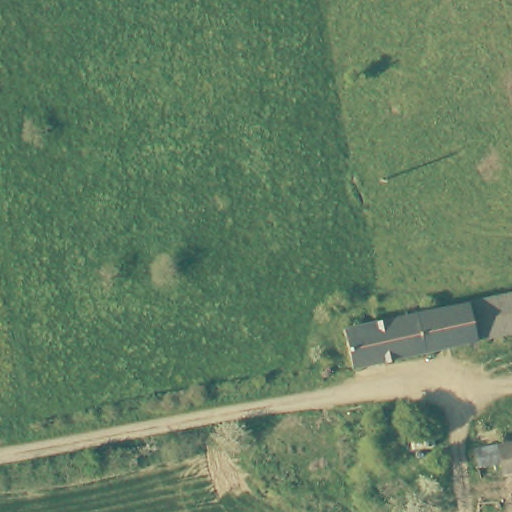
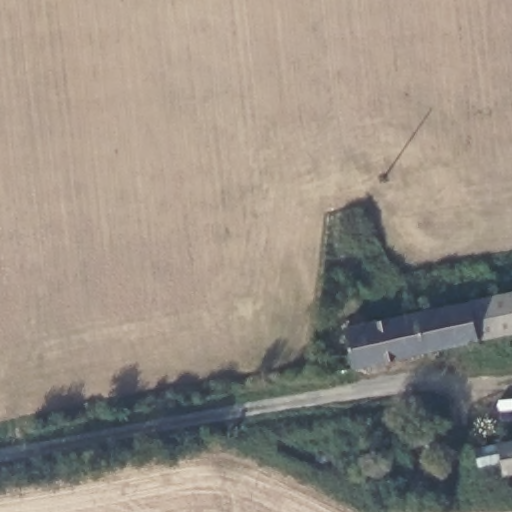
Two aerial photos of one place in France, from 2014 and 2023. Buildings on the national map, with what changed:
unchanged [(424,315),(423,314),(423,312),(423,311),(424,309),(425,308),(426,307),(427,306),(428,305),(430,305),(431,304),(433,304),(435,305),(437,306),(438,307),(438,309),(440,310),(440,312),(440,313),(512,297),(512,335),(355,369),(353,360),(347,333),(350,332),(393,323),(425,317),(424,315)]
unchanged [(437,424),(438,439),(409,442),(407,427),(437,424)]
unchanged [(496,441),(512,438),(512,470),(501,472),(499,459),(474,464),(472,455),(470,446),(476,445),(496,441)]

